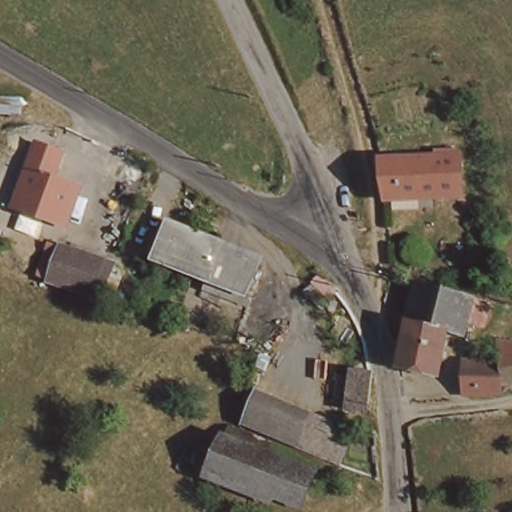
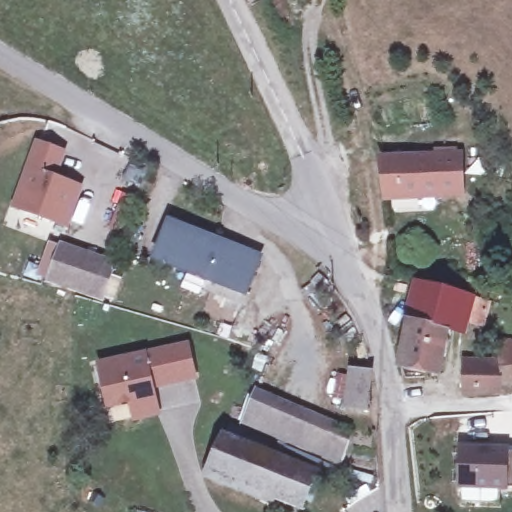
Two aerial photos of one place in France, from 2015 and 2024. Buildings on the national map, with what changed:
unchanged [(36,141),(69,151),(58,178),(85,187),(70,228),(12,208),(36,141)]
unchanged [(381,158),(458,155),(460,191),(386,195),(381,158)]
unchanged [(247,288),(155,253),(161,237),(169,217),(261,253),(247,288)]
unchanged [(60,247),(108,264),(96,297),(48,281),(60,247)]
unchanged [(408,369),(415,326),(416,326),(426,289),(461,298),(478,303),(490,305),(484,324),(474,321),(470,338),(453,334),(443,377),(408,369)]
unchanged [(458,361),(490,362),(488,339),(512,343),(512,378),(490,378),(490,393),(467,393),(458,393),(458,379),(458,361)]
new [(135,418),(133,406),(132,401),(110,406),(100,365),(188,346),(195,377),(159,385),(158,381),(152,382),(156,401),(158,412),(135,418)]
unchanged [(347,407),(356,371),(373,373),(368,409),(347,407)]
unchanged [(314,409),(310,421),(339,433),(332,456),(241,424),(256,386),(314,409)]
unchanged [(204,465),(220,431),(263,448),(282,455),(268,490),(204,465)]
new [(508,493),(456,489),(460,446),(511,446),(512,447),(512,488),(508,488),(508,493)]
unchanged [(282,455),(311,466),(297,502),(268,490),(282,455)]

